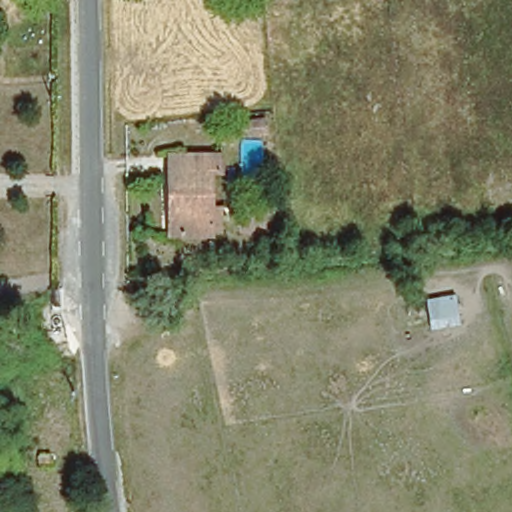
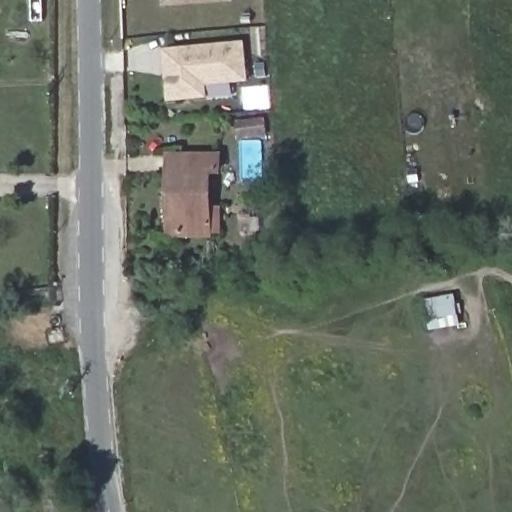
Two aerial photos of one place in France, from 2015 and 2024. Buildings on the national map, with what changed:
new [(234,0),(162,5),(162,0),(234,0)]
new [(246,40),(249,82),(208,85),(209,97),(169,101),(163,49),(246,40)]
unchanged [(265,120),(266,135),(238,137),(237,122),(265,120)]
unchanged [(222,235),(211,235),(170,235),(169,169),(169,155),(179,155),(220,155),(221,172),(211,172),(211,209),(222,209),(222,235)]
unchanged [(36,457),(49,455),(50,465),(38,467),(36,457)]

